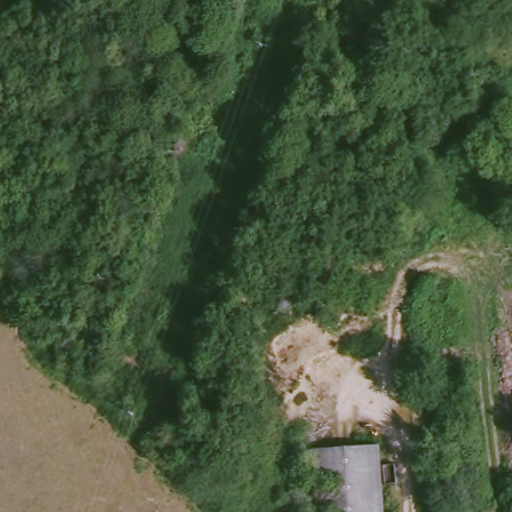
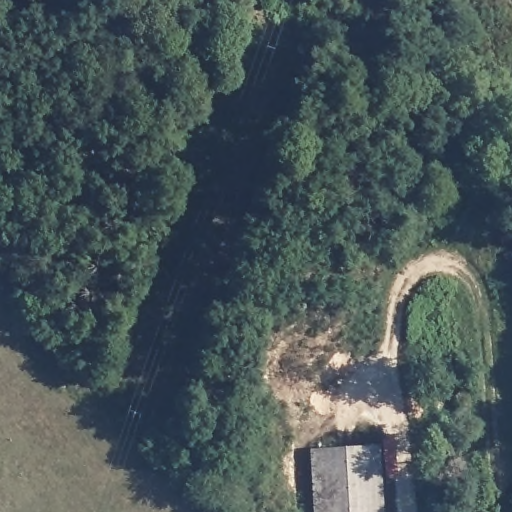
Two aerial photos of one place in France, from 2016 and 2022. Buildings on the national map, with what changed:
unchanged [(375,445),(379,512),(310,512),(307,447),(375,445)]

